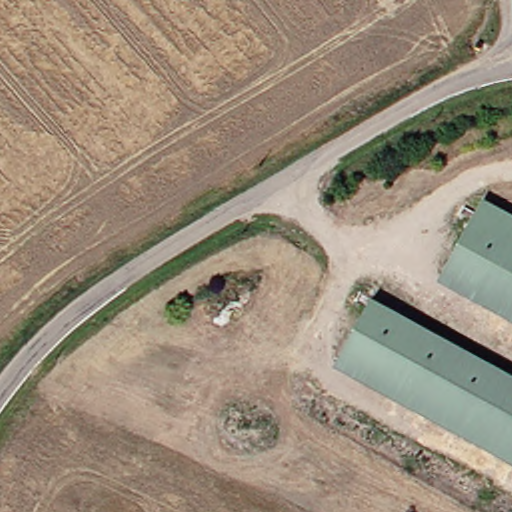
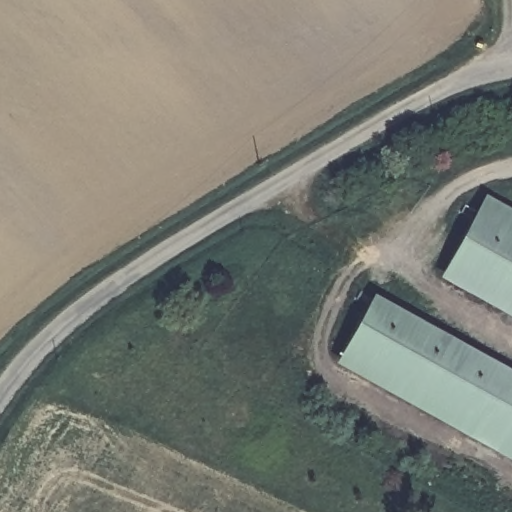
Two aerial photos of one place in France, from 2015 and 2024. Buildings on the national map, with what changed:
unchanged [(438,281),(486,196),(512,212),(512,321),(438,281)]
unchanged [(372,299),(512,375),(512,464),(334,368),(372,299)]

